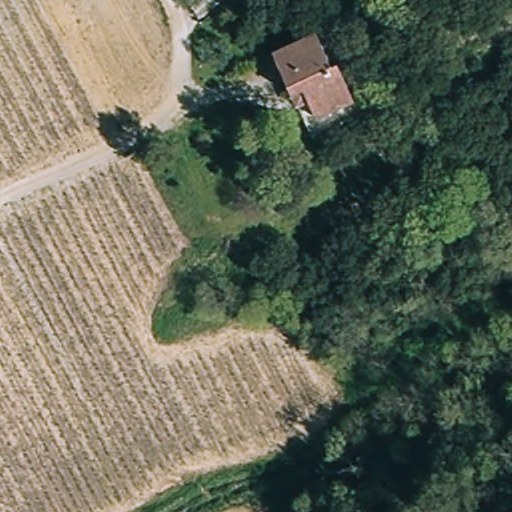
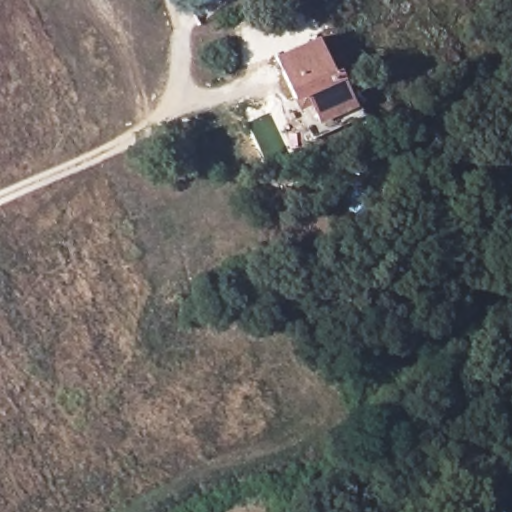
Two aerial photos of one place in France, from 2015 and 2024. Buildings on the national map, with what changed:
unchanged [(296,103),(279,62),(320,45),(334,77),(341,74),(357,109),(319,125),(313,109),(301,113),(296,103)]

